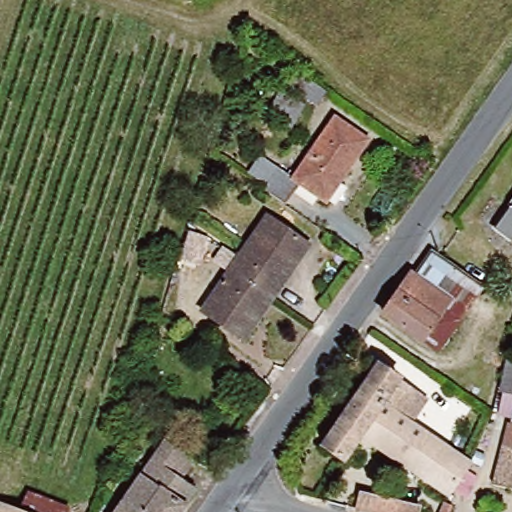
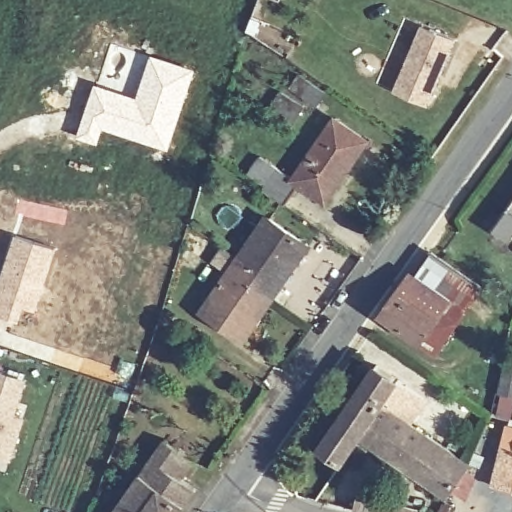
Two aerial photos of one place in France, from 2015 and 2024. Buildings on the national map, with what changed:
new [(421,29),(429,32),(454,42),(427,108),(394,95),(415,43),(421,29)]
new [(94,82),(135,95),(149,54),(196,69),(168,151),(103,129),(98,144),(75,136),(94,82)]
unchanged [(326,86),(317,99),(291,81),(300,68),(326,86)]
unchanged [(279,90),(302,103),(289,125),(266,112),(279,90)]
unchanged [(286,205),(242,175),(258,153),(290,176),(334,114),(367,137),(324,198),(301,182),(286,205)]
unchanged [(512,236),(510,238),(494,227),(512,202),(512,236)]
unchanged [(252,282),(261,270),(241,256),(268,217),(310,245),(274,297),(252,282)]
new [(13,235),(55,248),(35,311),(24,307),(19,321),(0,313),(0,276),(13,235)]
unchanged [(433,252),(482,287),(438,351),(385,313),(411,276),(415,278),(433,252)]
unchanged [(252,282),(274,297),(246,337),(204,310),(241,256),(261,270),(252,282)]
unchanged [(512,350),(512,410),(494,397),(500,362),(506,362),(509,350),(512,350)]
unchanged [(425,397),(409,420),(381,402),(380,404),(362,428),(341,458),(321,444),(377,363),(425,397)]
new [(24,382),(13,418),(22,421),(11,460),(0,456),(0,375),(24,382)]
unchanged [(380,404),(467,462),(450,487),(362,428),(380,404)]
unchanged [(512,489),(490,483),(508,412),(512,412),(512,489)]
unchanged [(114,512),(165,437),(199,462),(205,466),(191,485),(197,490),(181,512),(114,512)]
unchanged [(68,511),(67,512),(18,512),(0,505),(0,499),(4,487),(68,511)]
unchanged [(419,507),(418,512),(374,512),(356,508),(360,494),(419,507)]
unchanged [(452,506),(449,512),(441,512),(446,502),(452,506)]
unchanged [(18,512),(0,512),(0,505),(18,512)]

